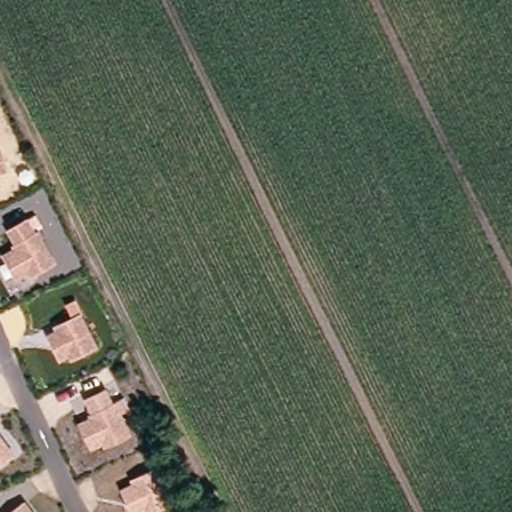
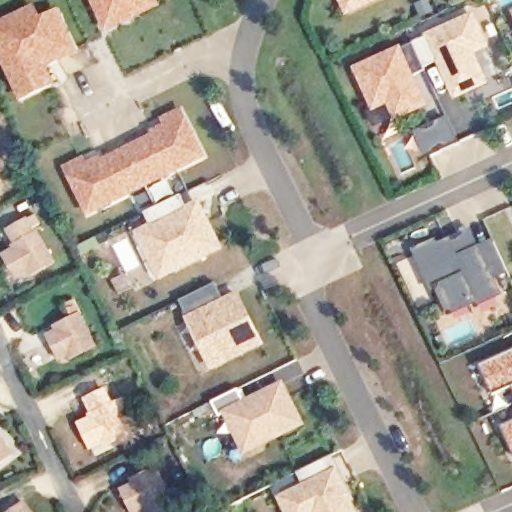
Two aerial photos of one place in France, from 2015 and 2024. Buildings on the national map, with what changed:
new [(138,10),(107,24),(95,0),(134,0),(138,10)]
new [(347,13),(340,0),(376,0),(347,13)]
new [(20,103),(0,60),(0,21),(35,5),(42,16),(46,14),(61,9),(81,52),(49,67),(58,87),(20,103)]
new [(454,99),(437,61),(415,73),(429,106),(396,119),(389,104),(375,111),(354,66),(402,45),(427,35),(426,33),(475,11),(491,46),(477,53),(491,82),(454,99)]
new [(89,214),(64,166),(86,154),(89,160),(102,154),(105,157),(154,132),(152,128),(164,121),(160,115),(182,104),(207,155),(89,214)]
unchanged [(1,149),(7,169),(0,172),(0,150),(1,149)]
new [(160,280),(136,230),(151,222),(147,211),(182,193),(188,204),(202,198),(225,247),(160,280)]
unchanged [(2,255),(13,248),(11,244),(14,242),(6,230),(23,219),(31,232),(34,230),(52,261),(30,275),(27,271),(16,278),(2,255)]
new [(497,277),(503,293),(476,305),(475,302),(450,314),(438,286),(432,289),(414,248),(437,236),(440,241),(473,226),(481,244),(494,238),(509,270),(497,277)]
new [(214,370),(187,317),(180,301),(217,284),(225,298),(241,291),(267,346),(214,370)]
unchanged [(50,336),(60,331),(58,327),(82,315),(97,347),(74,359),(72,355),(61,360),(50,336)]
new [(482,365),(512,351),(512,388),(495,395),(482,365)]
new [(245,454),(223,414),(220,416),(213,402),(239,389),(245,399),(284,381),(307,424),(245,454)]
unchanged [(92,414),(85,398),(107,386),(115,401),(124,398),(130,410),(123,413),(133,434),(109,447),(107,444),(94,449),(78,422),(92,414)]
new [(512,422),(512,446),(502,426),(512,422)]
unchanged [(14,453),(0,464),(0,435),(14,453)]
new [(306,483),(300,472),(334,456),(356,501),(354,501),(359,512),(286,512),(278,497),(306,483)]
unchanged [(132,477),(159,465),(181,512),(150,512),(150,511),(146,512),(132,512),(122,488),(133,482),(132,477)]
unchanged [(33,512),(10,512),(25,500),(33,512)]

